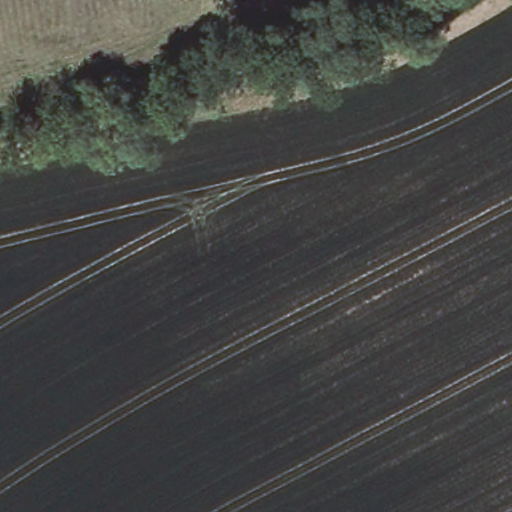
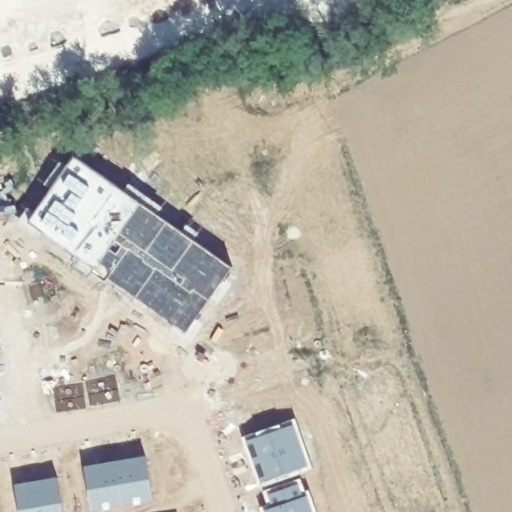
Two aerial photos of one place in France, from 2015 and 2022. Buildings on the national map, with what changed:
new [(228,268),(188,332),(30,221),(73,158),(228,268)]
new [(293,425),(308,466),(260,482),(246,441),(293,425)]
new [(144,457),(153,502),(96,512),(90,512),(83,468),(144,457)]
new [(56,479),(62,512),(19,512),(14,485),(56,479)]
new [(273,508),(269,493),(298,484),(302,497),(306,496),(312,512),(264,512),(264,511),(273,508)]

